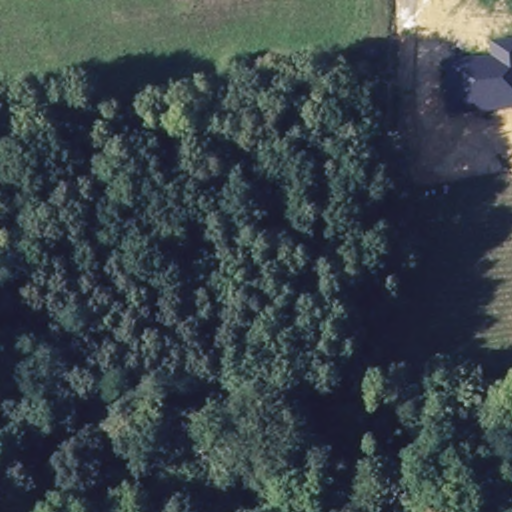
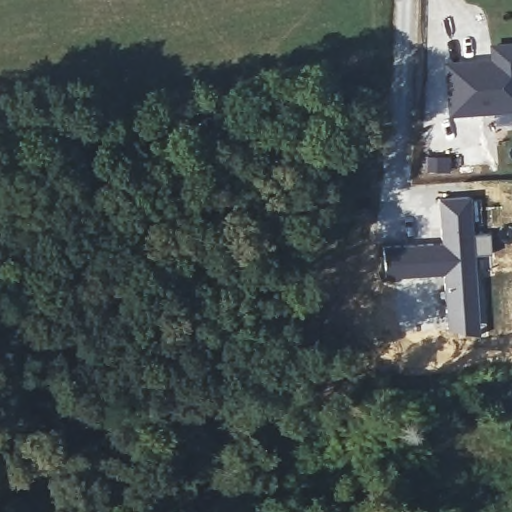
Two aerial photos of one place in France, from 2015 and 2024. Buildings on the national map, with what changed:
unchanged [(447,60),(489,58),(488,43),(512,42),(512,111),(450,116),(447,60)]
new [(445,158),(445,173),(427,173),(426,158),(445,158)]
new [(447,332),(446,315),(443,276),(385,280),(383,249),(441,245),(438,200),(469,198),(472,236),(489,235),(491,256),(473,257),(477,313),(479,338),(447,332)]

